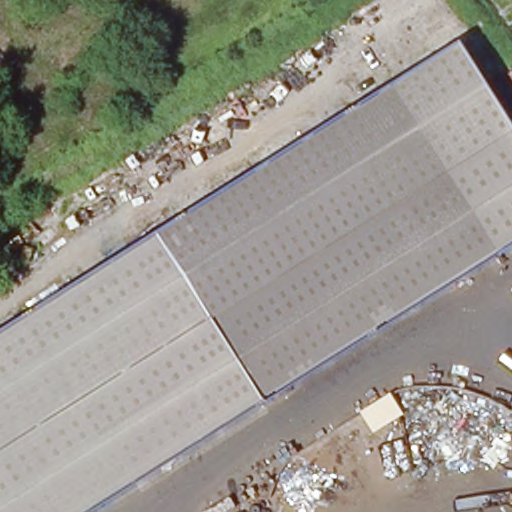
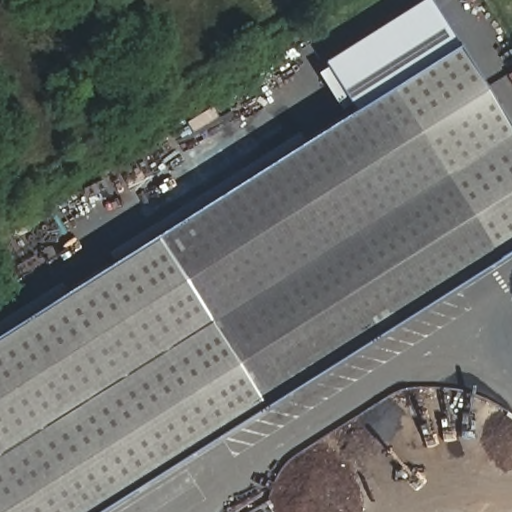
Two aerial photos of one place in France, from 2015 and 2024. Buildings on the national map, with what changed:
new [(323,59),(417,0),(430,0),(455,41),(341,113),(316,71),(326,64),(323,59)]
unchanged [(455,41),(512,132),(512,239),(87,512),(0,512),(0,326),(455,41)]
unchanged [(512,68),(512,83),(504,72),(512,68)]

